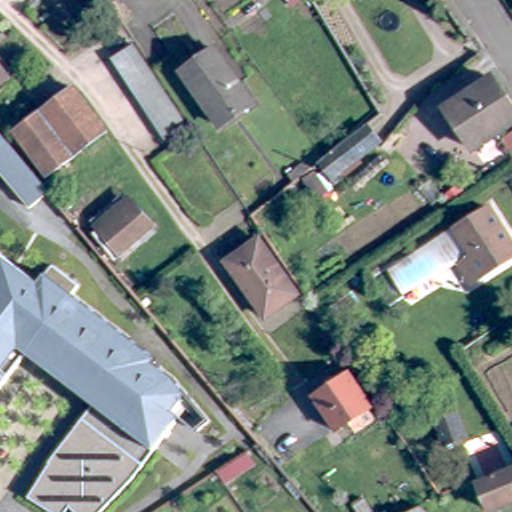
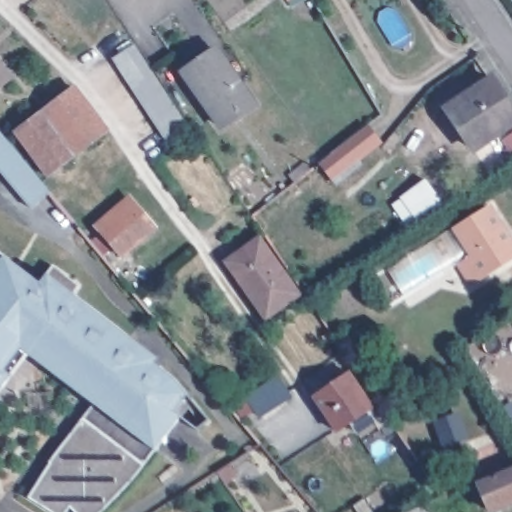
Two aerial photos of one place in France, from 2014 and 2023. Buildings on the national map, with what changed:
unchanged [(140,46),(195,127),(173,141),(118,60),(140,46)]
unchanged [(192,73),(224,51),(261,104),(229,127),(192,73)]
unchanged [(0,93),(0,58),(17,78),(0,93)]
unchanged [(446,106),(490,78),(512,114),(512,123),(474,148),(446,106)]
unchanged [(61,179),(25,136),(84,89),(119,130),(61,179)]
unchanged [(5,163),(0,167),(0,125),(2,123),(20,144),(26,152),(62,195),(44,210),(5,163)]
unchanged [(505,135),(512,132),(512,147),(505,135)]
unchanged [(374,133),(386,150),(364,167),(367,170),(340,190),(326,170),(331,166),(374,133)]
unchanged [(99,223),(134,194),(165,228),(129,258),(99,223)]
unchanged [(477,260),(480,258),(461,232),(479,219),(493,209),(512,238),(512,260),(500,268),(489,276),(474,286),(462,270),(477,260)]
unchanged [(85,255),(75,243),(88,231),(89,232),(98,244),(85,255)]
unchanged [(232,262),(265,240),(304,293),(272,317),(232,262)]
unchanged [(40,285),(45,276),(52,267),(79,285),(72,297),(159,363),(154,370),(194,403),(154,456),(104,512),(42,512),(29,504),(85,401),(22,351),(5,372),(15,378),(0,396),(0,252),(5,256),(40,285)]
unchanged [(320,397),(355,373),(376,404),(345,429),(320,397)]
unchanged [(448,453),(441,431),(462,425),(468,446),(448,453)]
unchanged [(512,475),(512,508),(500,512),(497,512),(486,486),(486,483),(505,477),(512,475)]
unchanged [(420,512),(418,512),(420,511),(420,512)]

